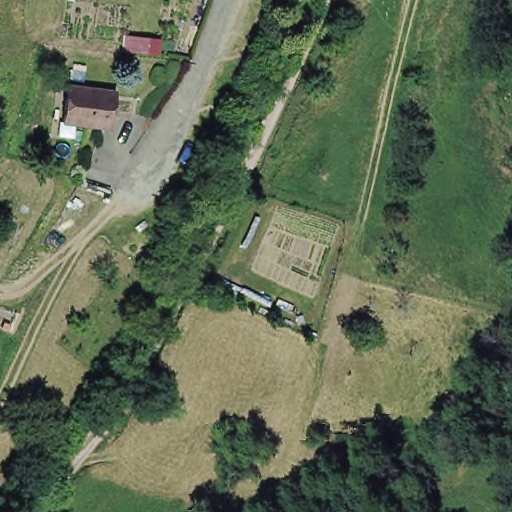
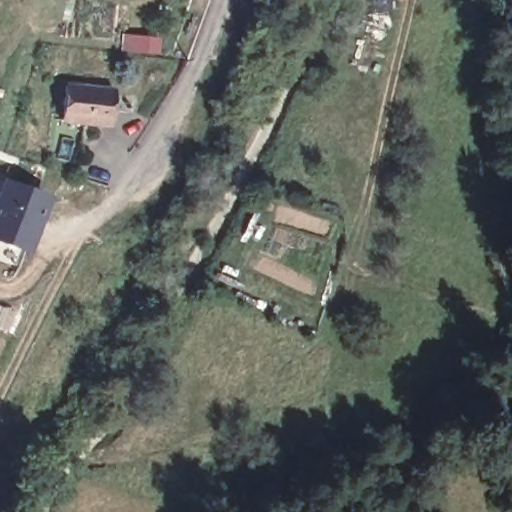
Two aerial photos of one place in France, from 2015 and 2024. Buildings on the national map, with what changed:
new [(164,35),(162,58),(125,52),(125,35),(164,35)]
unchanged [(109,125),(62,120),(67,85),(113,91),(109,125)]
new [(30,255),(0,244),(0,191),(4,179),(52,197),(30,255)]

